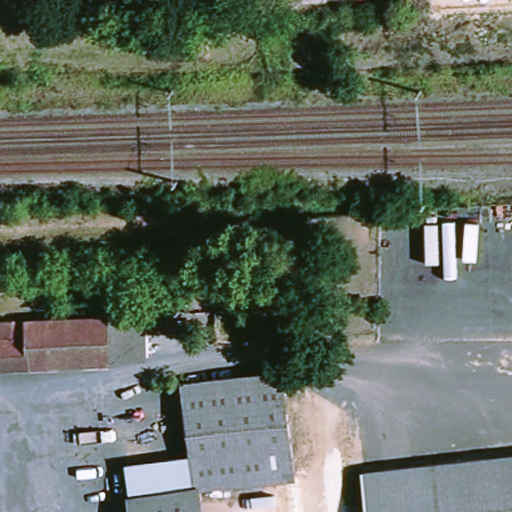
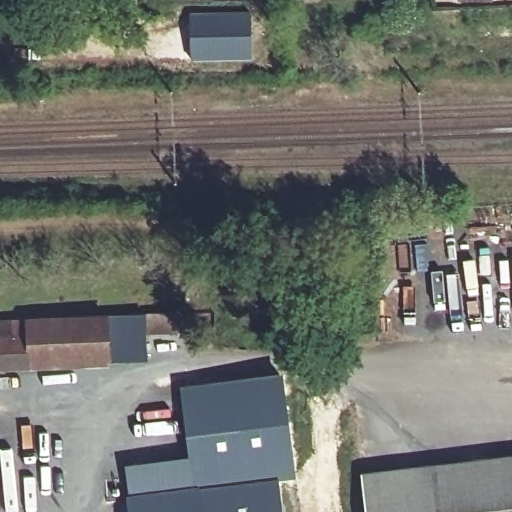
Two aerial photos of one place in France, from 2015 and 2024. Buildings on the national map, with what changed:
new [(454,0),(485,0),(485,5),(454,5),(454,0)]
new [(251,10),(252,60),(190,60),(189,11),(251,10)]
unchanged [(0,369),(0,319),(181,314),(179,361),(0,369)]
unchanged [(285,373),(298,478),(218,490),(202,492),(197,454),(187,384),(285,373)]
unchanged [(177,496),(131,501),(127,464),(197,454),(202,492),(177,496)]
unchanged [(364,512),(360,476),(512,457),(512,512),(364,512)]
unchanged [(51,478),(109,473),(112,498),(53,503),(51,478)]
unchanged [(202,492),(205,512),(131,512),(130,501),(131,501),(177,496),(202,492)]

